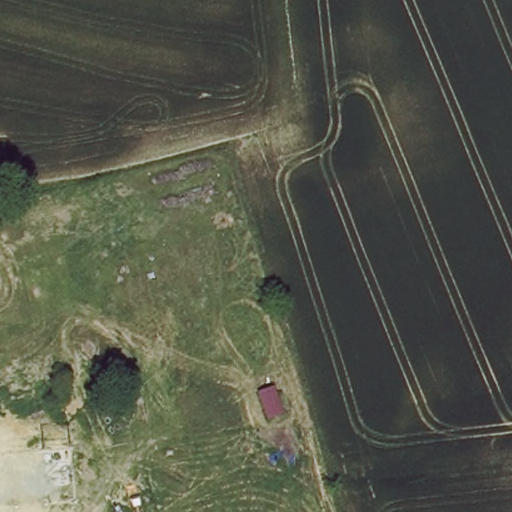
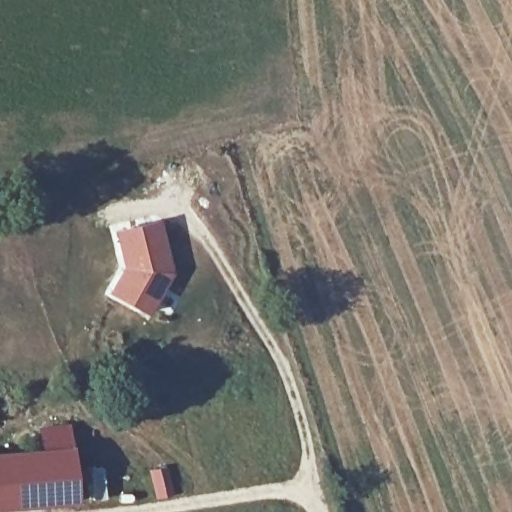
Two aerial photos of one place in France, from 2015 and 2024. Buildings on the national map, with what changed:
new [(120,268),(111,230),(161,218),(174,272),(146,318),(105,294),(120,268)]
new [(40,427),(70,424),(79,503),(0,510),(0,452),(42,448),(40,427)]

